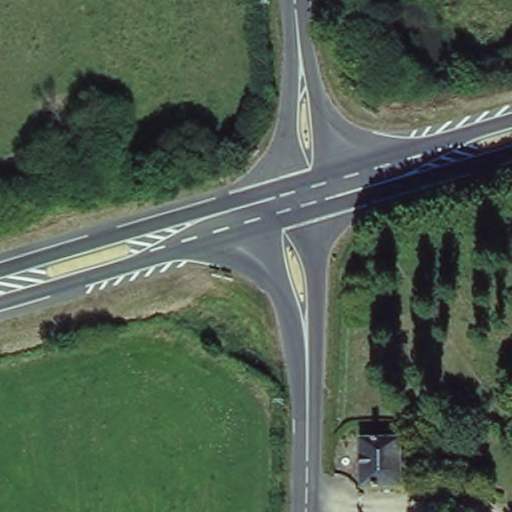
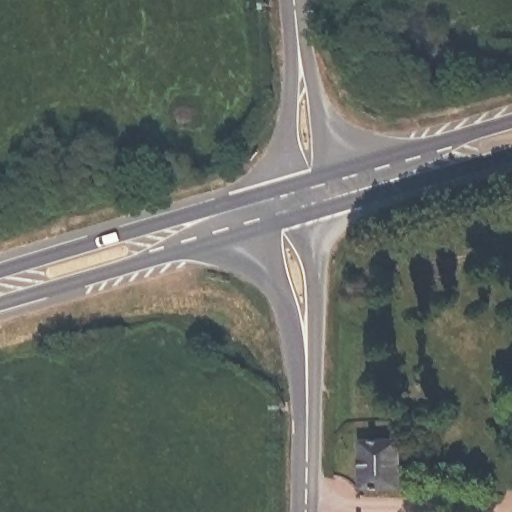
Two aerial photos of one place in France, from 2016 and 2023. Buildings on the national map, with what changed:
unchanged [(398,441),(398,488),(360,485),(362,439),(398,441)]

